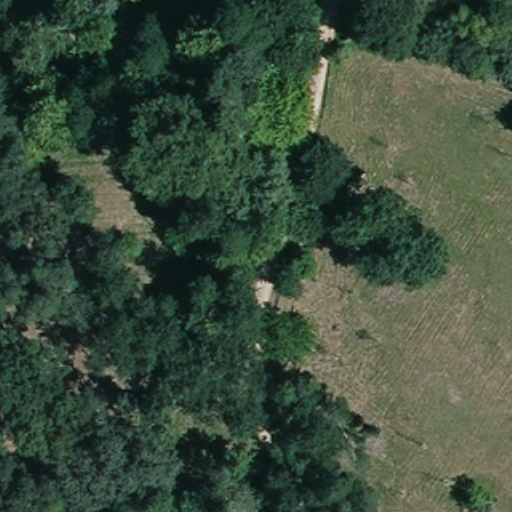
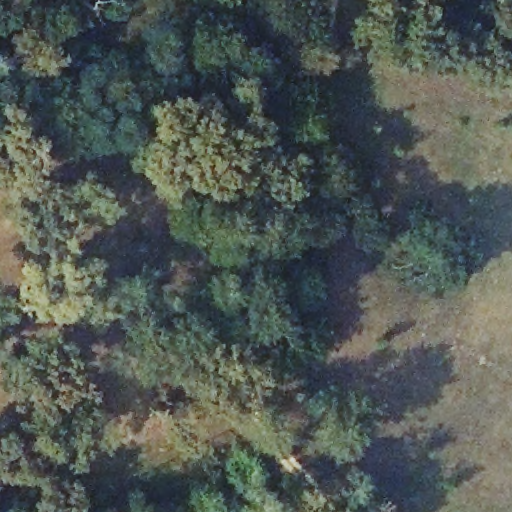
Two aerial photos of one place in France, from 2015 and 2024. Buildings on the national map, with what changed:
unchanged [(158,221),(142,269),(114,259),(134,209),(158,221)]

